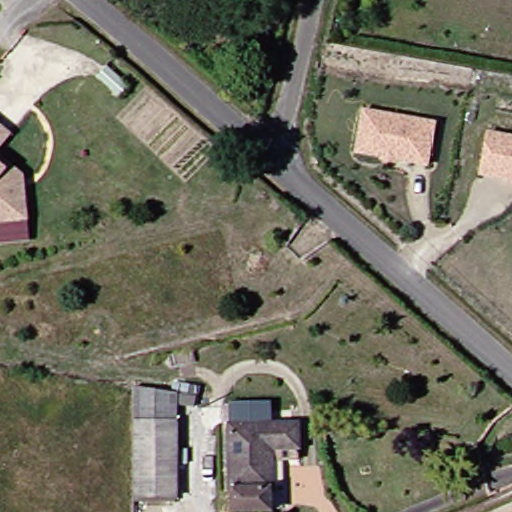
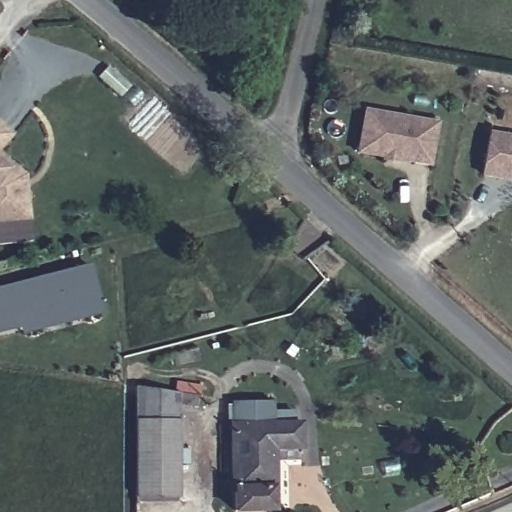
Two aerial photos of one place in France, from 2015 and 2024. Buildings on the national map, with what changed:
unchanged [(130,90),(120,101),(97,81),(107,70),(130,90)]
unchanged [(365,111),(437,124),(429,166),(357,153),(365,111)]
unchanged [(13,130),(0,146),(0,120),(1,121),(13,130)]
unchanged [(490,134),(512,138),(512,181),(482,176),(490,134)]
unchanged [(27,196),(30,217),(0,220),(0,151),(25,172),(27,196)]
new [(104,314),(21,334),(20,328),(0,332),(0,287),(91,264),(104,314)]
unchanged [(184,392),(184,405),(167,402),(165,421),(168,421),(169,496),(137,495),(137,420),(136,384),(151,386),(169,389),(184,392)]
unchanged [(266,422),(291,422),(291,447),(264,446),(262,508),(224,511),(217,399),(266,407),(266,422)]

